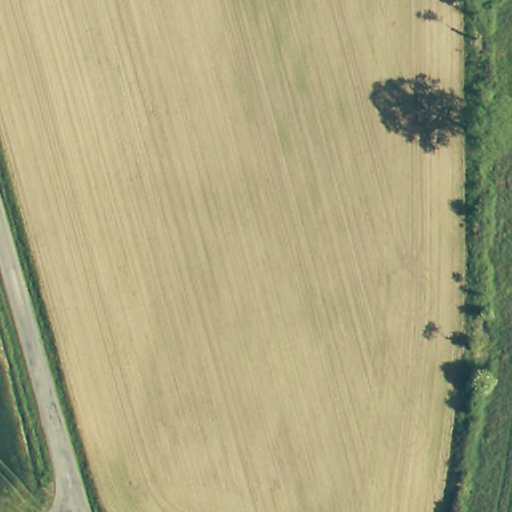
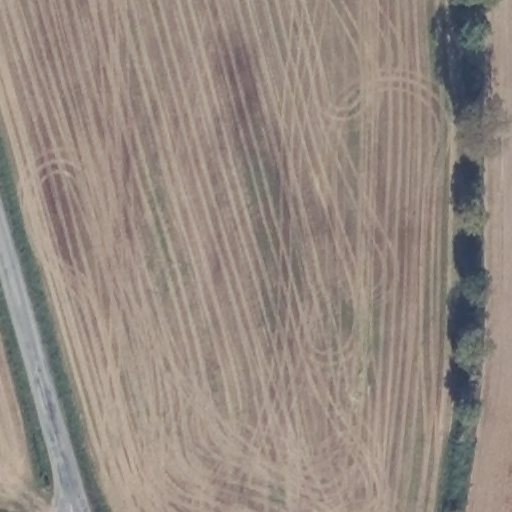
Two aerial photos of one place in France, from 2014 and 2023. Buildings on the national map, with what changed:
[]

